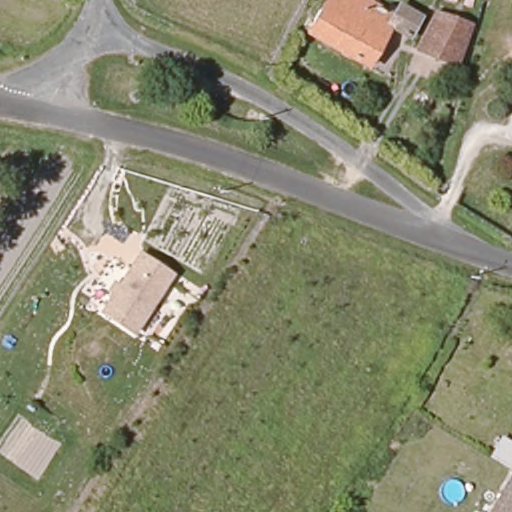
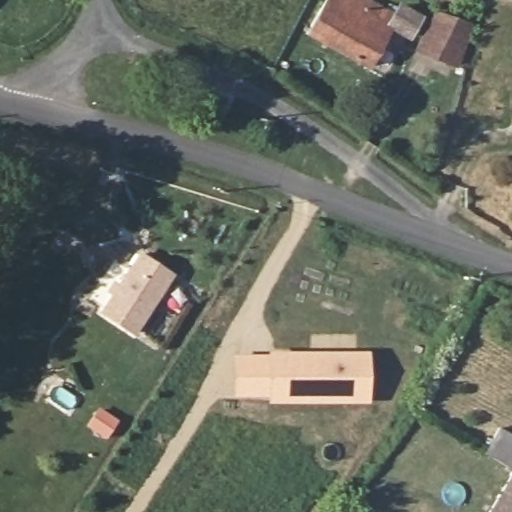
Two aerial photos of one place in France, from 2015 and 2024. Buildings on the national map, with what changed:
unchanged [(386,34),(365,70),(311,41),(334,0),(351,0),(391,19),(396,11),(418,21),(405,43),(386,34)]
unchanged [(419,52),(438,10),(472,24),(455,66),(419,52)]
unchanged [(133,333),(99,312),(138,249),(173,273),(133,333)]
new [(268,403),(268,398),(233,398),(233,354),(369,352),(370,406),(268,403)]
unchanged [(492,512),(512,480),(512,512),(492,512)]

